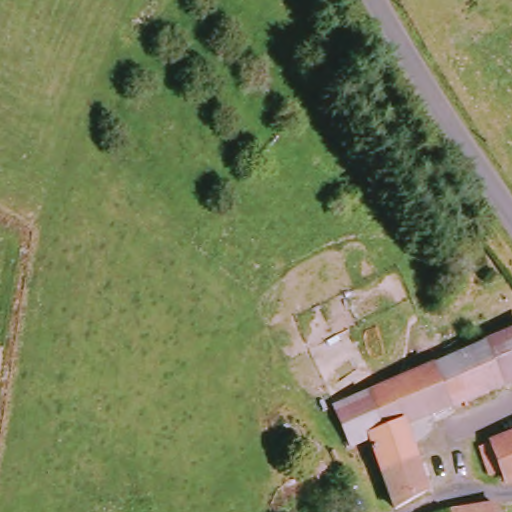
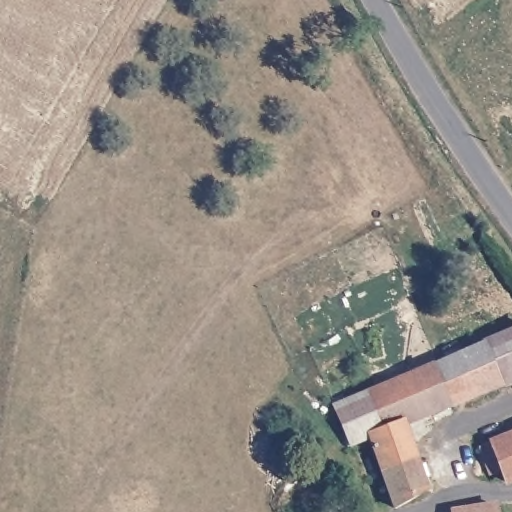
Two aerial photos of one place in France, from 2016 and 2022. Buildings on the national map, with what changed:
unchanged [(512,328),(512,382),(492,390),(487,392),(409,424),(421,456),(386,467),(374,435),(384,429),(367,391),(449,357),(470,347),(475,345),(512,328)]
unchanged [(384,429),(374,435),(350,445),(334,406),(367,391),(384,429)]
unchanged [(502,474),(490,477),(481,451),(512,440),(512,483),(506,485),(502,474)]
unchanged [(421,456),(435,492),(399,504),(386,467),(421,456)]

